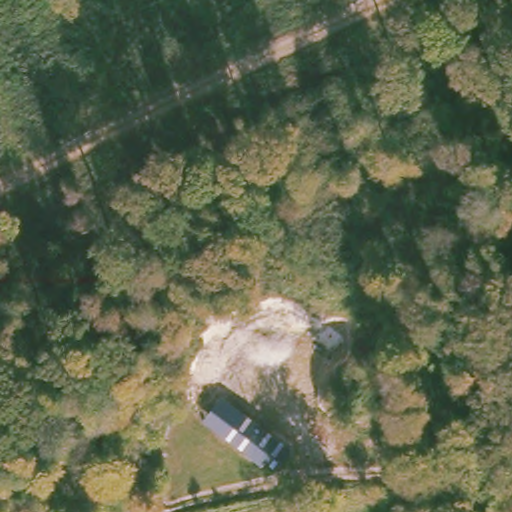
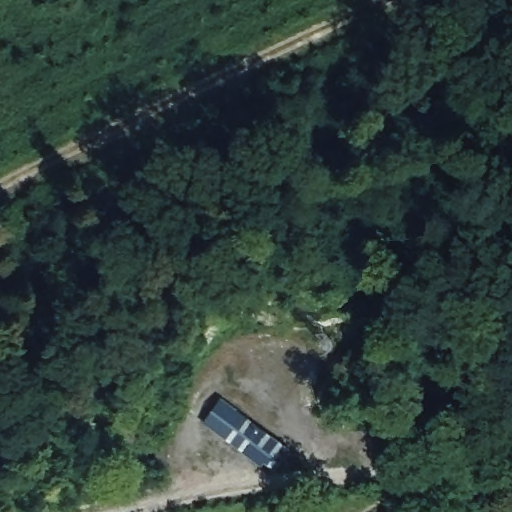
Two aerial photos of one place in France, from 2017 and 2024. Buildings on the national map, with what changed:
unchanged [(221,400),(288,449),(270,474),(202,425),(221,400)]

